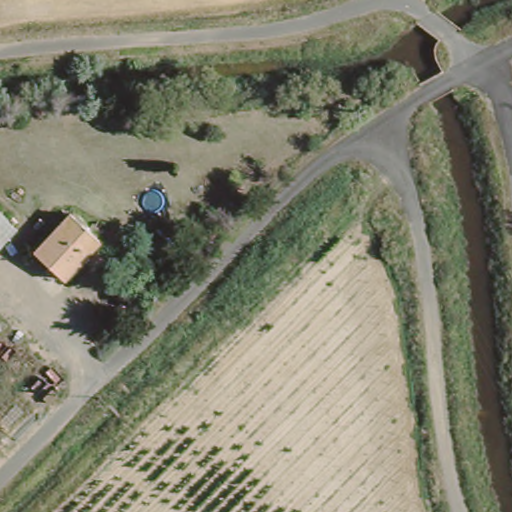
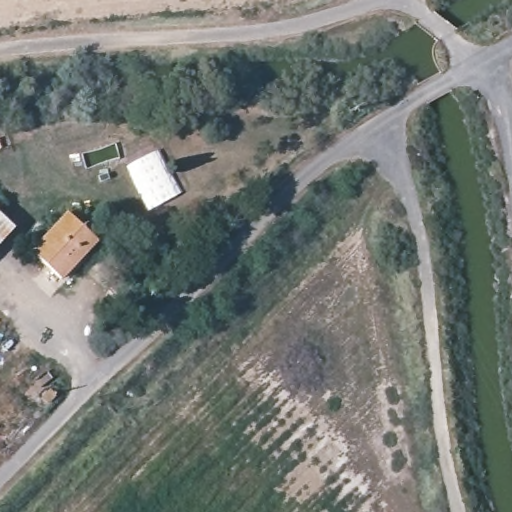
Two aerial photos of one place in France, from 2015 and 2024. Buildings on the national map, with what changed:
unchanged [(14,229),(0,244),(0,215),(14,229)]
unchanged [(63,284),(36,258),(73,217),(100,243),(63,284)]

